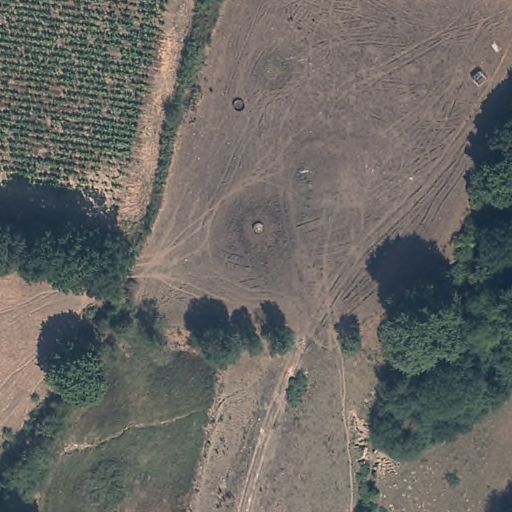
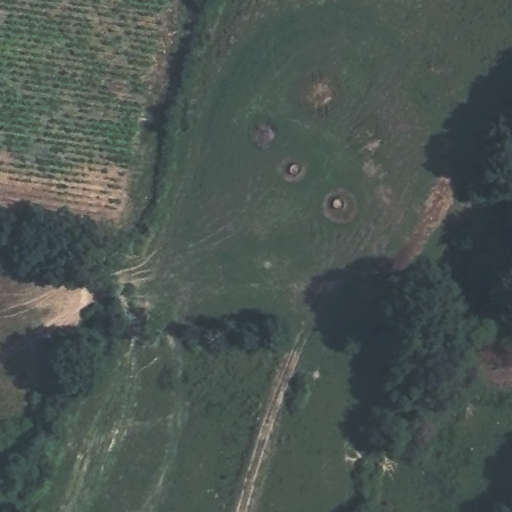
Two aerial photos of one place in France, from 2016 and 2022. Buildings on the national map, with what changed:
[]

